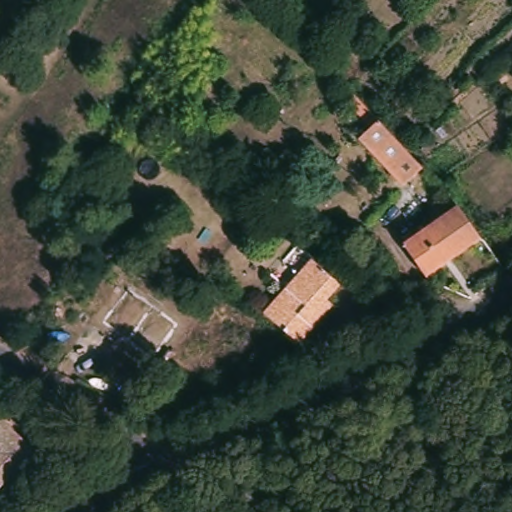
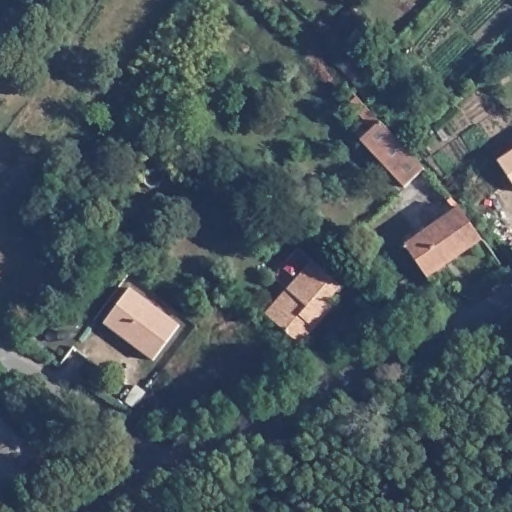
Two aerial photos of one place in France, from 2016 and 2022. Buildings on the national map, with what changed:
unchanged [(397,180),(359,139),(379,121),(399,145),(417,162),(397,180)]
unchanged [(461,204),(480,237),(424,271),(404,237),(461,204)]
unchanged [(303,258),(334,276),(324,294),(330,298),(304,340),(290,331),(266,318),(303,258)]
new [(129,290),(178,325),(153,360),(104,323),(129,290)]
unchanged [(15,470),(14,469),(0,484),(0,418),(34,450),(15,470)]

